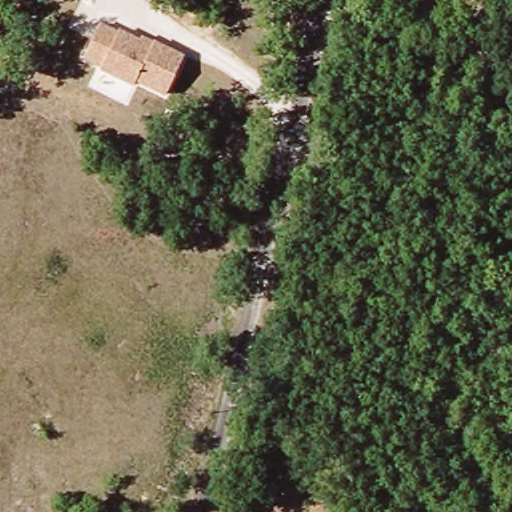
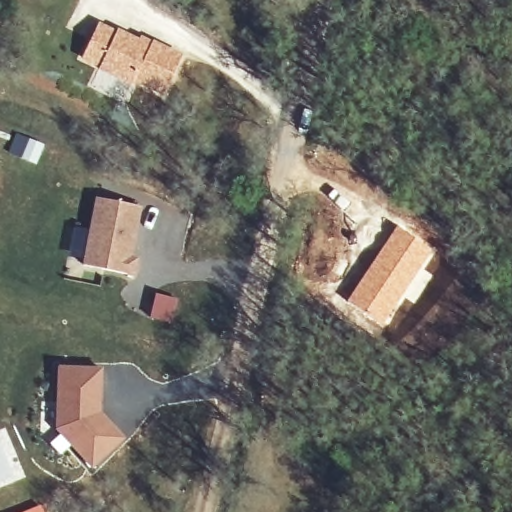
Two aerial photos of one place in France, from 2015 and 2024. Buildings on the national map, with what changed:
unchanged [(137,84),(134,90),(82,64),(100,23),(118,32),(120,29),(145,39),(147,35),(187,54),(166,96),(137,84)]
new [(145,206),(134,255),(140,257),(135,278),(83,267),(95,197),(145,206)]
new [(397,224),(436,249),(425,267),(434,274),(415,303),(404,296),(384,326),(346,300),(397,224)]
new [(103,369),(100,412),(125,438),(92,470),(55,429),(59,367),(103,369)]

